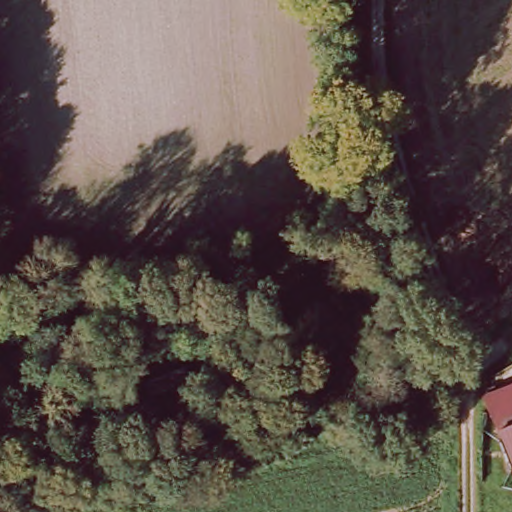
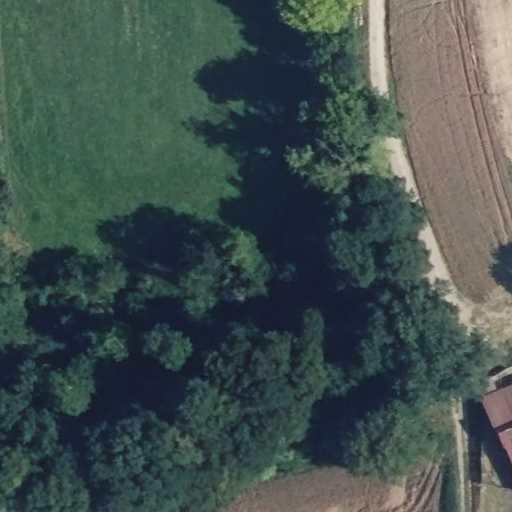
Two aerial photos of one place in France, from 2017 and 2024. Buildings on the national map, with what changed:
unchanged [(512,474),(497,433),(482,398),(512,385),(512,474)]

